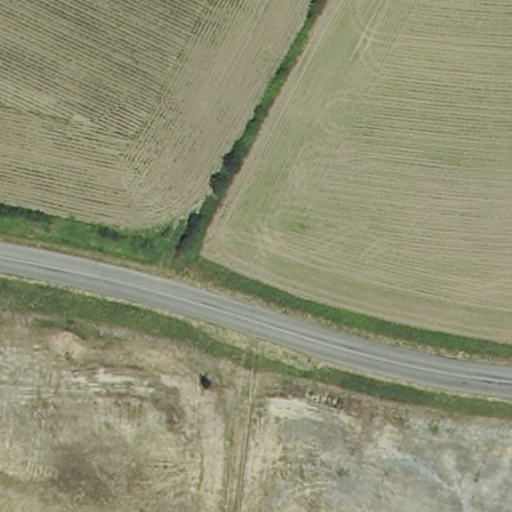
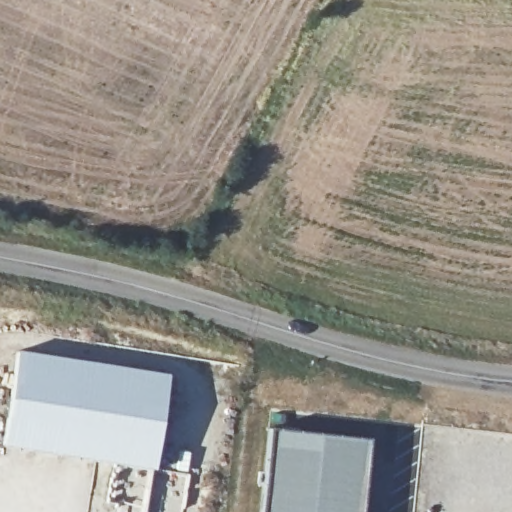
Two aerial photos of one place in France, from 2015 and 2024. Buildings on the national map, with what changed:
new [(169,374),(154,472),(0,446),(0,440),(16,350),(169,374)]
new [(369,439),(361,512),(259,512),(269,428),(369,439)]
new [(162,512),(168,473),(161,471),(164,447),(190,452),(187,475),(189,475),(183,512),(162,512)]

